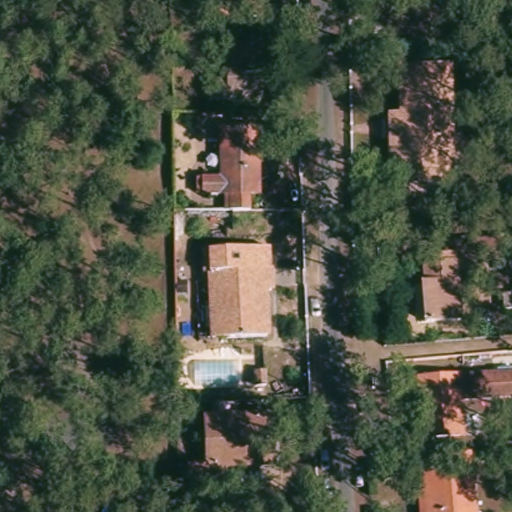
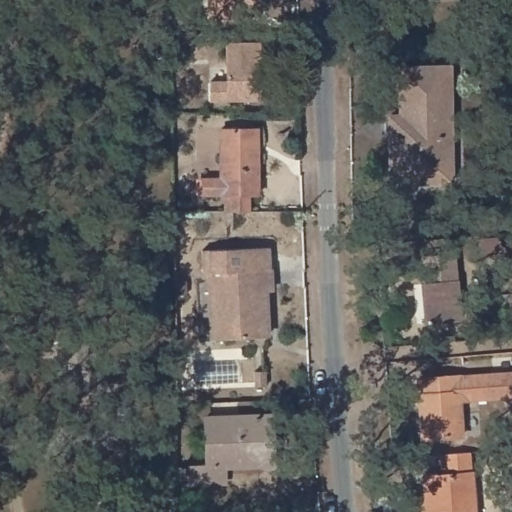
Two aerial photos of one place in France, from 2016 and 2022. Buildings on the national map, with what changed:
unchanged [(255,11),(206,12),(206,0),(255,0),(255,11)]
unchanged [(277,40),(276,95),(226,94),(226,76),(245,76),(245,39),(277,40)]
unchanged [(396,112),(396,63),(445,62),(447,178),(387,178),(386,112),(396,112)]
unchanged [(220,187),(199,187),(199,168),(217,169),(217,121),(246,122),(254,122),(254,152),(254,187),(245,187),(245,202),(227,202),(220,202),(220,187)]
unchanged [(209,288),(209,267),(201,267),(201,245),(265,242),(266,287),(262,287),(263,332),(219,333),(210,333),(209,288)]
unchanged [(458,258),(463,325),(430,327),(426,260),(458,258)]
unchanged [(458,392),(456,392),(451,392),(453,431),(416,434),(412,391),(411,375),(512,367),(512,392),(458,396),(458,392)]
unchanged [(269,411),(271,460),(221,460),(221,477),(186,477),(185,459),(205,458),(204,412),(269,411)]
unchanged [(422,487),(421,468),(440,468),(439,449),(445,448),(468,447),(474,512),(417,512),(415,487),(422,487)]

